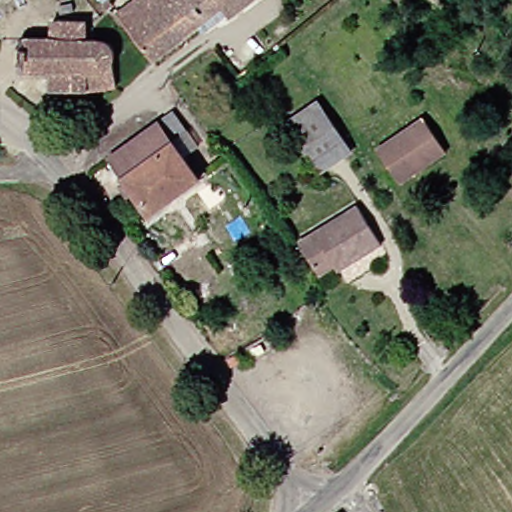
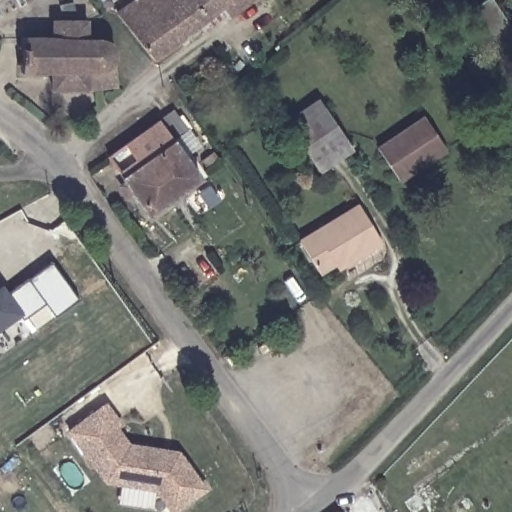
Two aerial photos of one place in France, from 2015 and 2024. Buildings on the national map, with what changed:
unchanged [(201,26),(156,60),(124,17),(146,0),(187,0),(185,3),(201,26)]
unchanged [(226,6),(201,26),(185,3),(187,0),(268,0),(240,23),(226,6)]
new [(486,0),(493,0),(512,27),(512,44),(496,55),(467,13),(486,0)]
unchanged [(46,89),(46,74),(18,73),(18,42),(19,37),(48,38),(49,21),(84,23),(83,39),(93,40),(102,40),(106,43),(109,46),(110,51),(110,56),(108,61),(106,64),(108,85),(82,90),(46,89)]
unchanged [(351,138),(359,151),(326,173),(292,125),(326,101),(351,138)]
unchanged [(194,130),(179,140),(205,178),(156,214),(115,158),(179,110),(194,130)]
unchanged [(449,151),(405,181),(385,150),(428,121),(449,151)]
unchanged [(344,271),(341,267),(326,277),(304,244),(360,206),(386,243),(344,271)]
new [(8,295),(30,279),(54,262),(71,285),(81,299),(57,316),(48,303),(25,320),(21,313),(0,328),(0,291),(4,289),(8,295)]
new [(96,464),(71,430),(107,404),(122,424),(118,426),(131,444),(165,449),(179,451),(187,462),(206,488),(174,512),(157,489),(122,483),(107,481),(96,464)]

